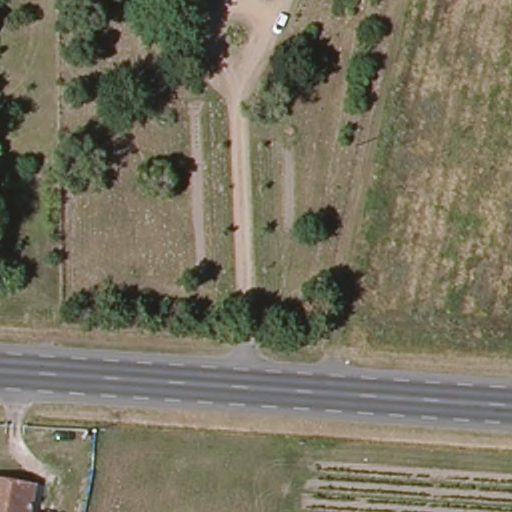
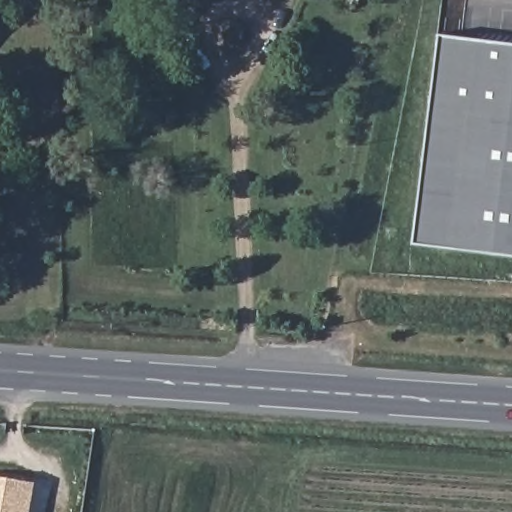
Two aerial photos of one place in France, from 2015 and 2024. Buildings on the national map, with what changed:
new [(512,47),(512,256),(412,244),(436,38),(512,47)]
unchanged [(0,477),(37,481),(33,512),(0,512),(0,477)]

